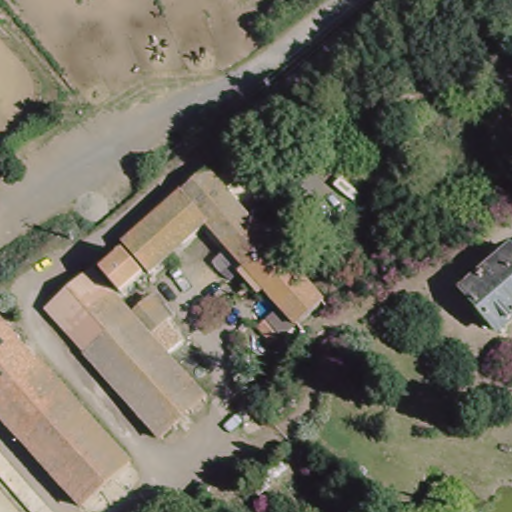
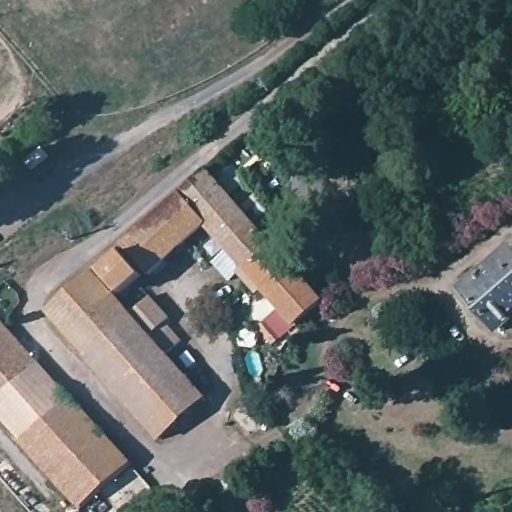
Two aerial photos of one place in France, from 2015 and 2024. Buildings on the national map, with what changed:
unchanged [(128,301),(146,283),(168,308),(164,311),(180,329),(164,345),(203,388),(158,428),(47,301),(207,160),(321,295),(297,315),(211,216),(176,247),(155,265),(150,260),(117,289),(128,301)]
unchanged [(509,243),(512,247),(512,306),(492,323),(461,286),(509,243)]
unchanged [(256,315),(269,328),(261,337),(247,324),(256,315)]
unchanged [(0,417),(0,319),(35,359),(127,464),(79,507),(0,417)]

